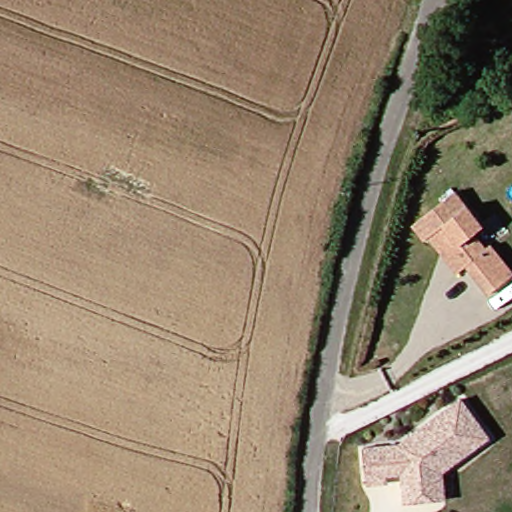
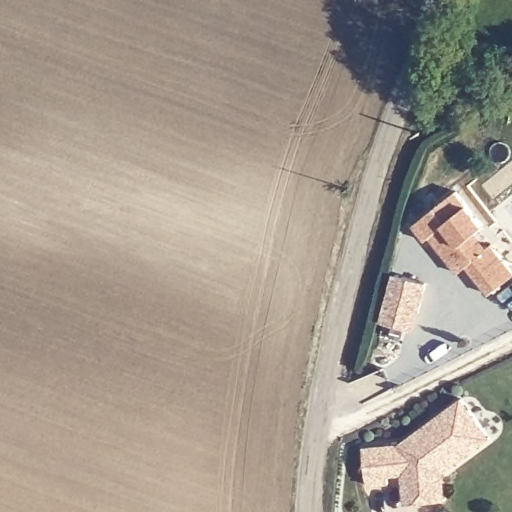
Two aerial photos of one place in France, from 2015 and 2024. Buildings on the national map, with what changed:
unchanged [(435,251),(422,236),(418,239),(408,225),(453,189),(481,224),(471,233),(483,249),(487,245),(511,274),(482,297),(459,268),(456,270),(452,273),(435,251)]
new [(417,332),(383,323),(396,274),(430,283),(417,332)]
unchanged [(393,483),(373,486),(367,449),(387,446),(403,444),(462,394),(487,425),(492,431),(447,469),(452,496),(437,498),(412,502),(407,473),(392,476),(393,483)]

